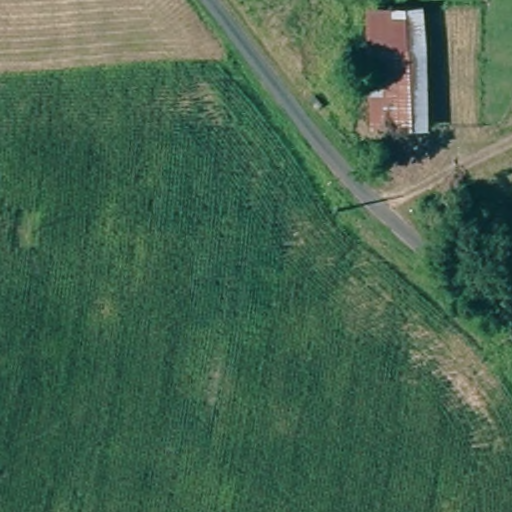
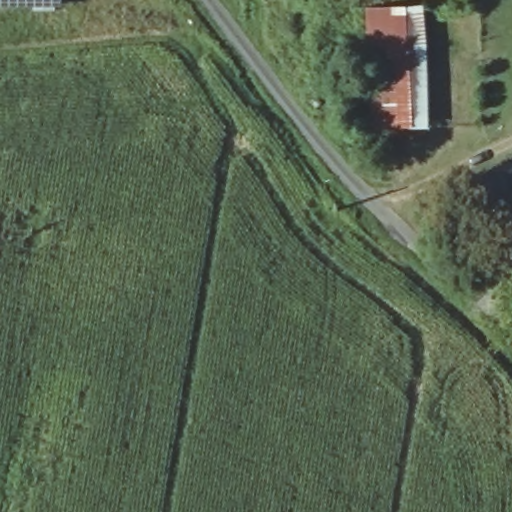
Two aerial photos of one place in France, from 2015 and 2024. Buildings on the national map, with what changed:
new [(0,10),(0,0),(62,0),(62,10),(0,10)]
unchanged [(358,10),(419,4),(423,52),(408,54),(414,128),(366,133),(358,10)]

